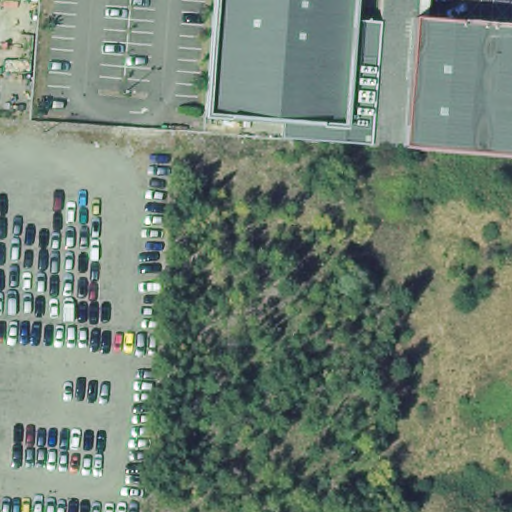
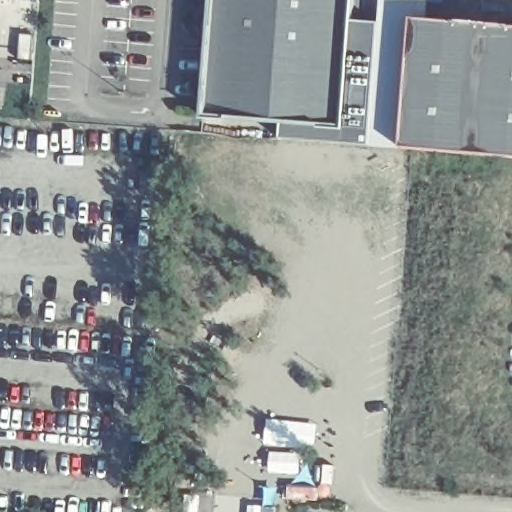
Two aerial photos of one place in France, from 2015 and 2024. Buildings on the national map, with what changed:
unchanged [(348,31),(375,33),(373,65),(366,151),(276,144),(278,129),(201,123),(210,0),(350,0),(348,31)]
unchanged [(366,151),(373,65),(375,33),(378,0),(411,0),(409,24),(399,154),(366,151)]
unchanged [(424,25),(409,24),(411,0),(425,0),(424,25)]
unchanged [(512,33),(512,162),(458,158),(399,154),(409,24),(424,25),(512,33)]

